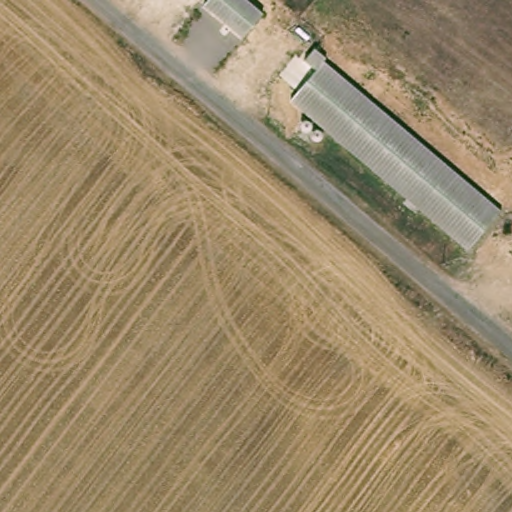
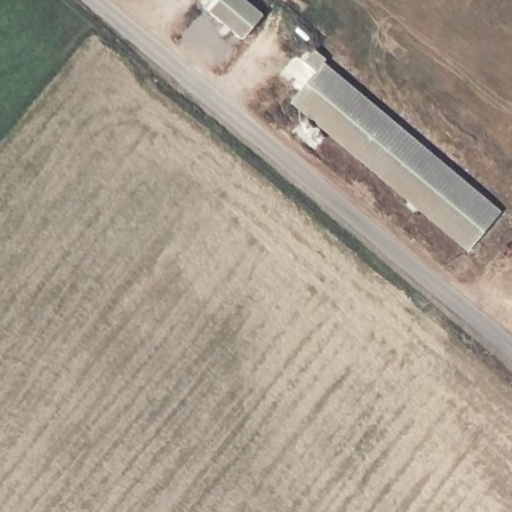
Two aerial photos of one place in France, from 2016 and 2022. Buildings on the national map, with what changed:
unchanged [(243,41),(204,7),(210,0),(241,0),(260,17),(243,41)]
unchanged [(500,210),(463,254),(330,136),(314,151),(294,133),(307,117),(289,101),(314,72),(304,61),(313,51),(500,210)]

